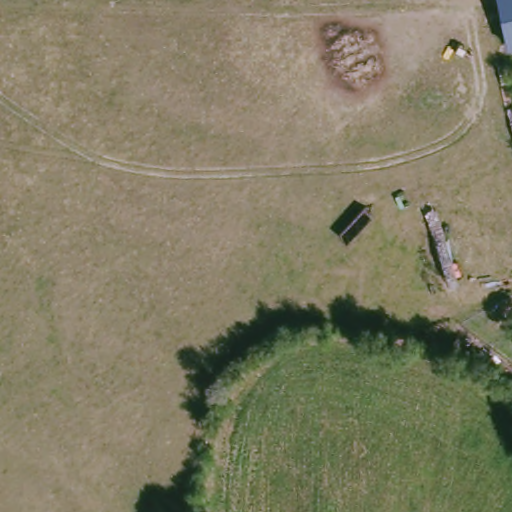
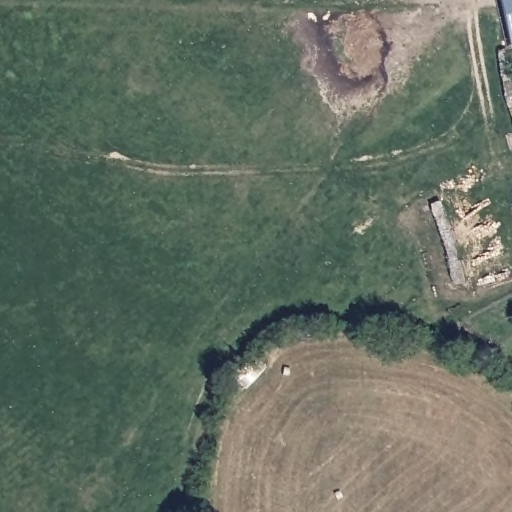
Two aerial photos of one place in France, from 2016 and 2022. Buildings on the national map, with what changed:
unchanged [(509,47),(499,0),(512,0),(512,46),(509,47)]

